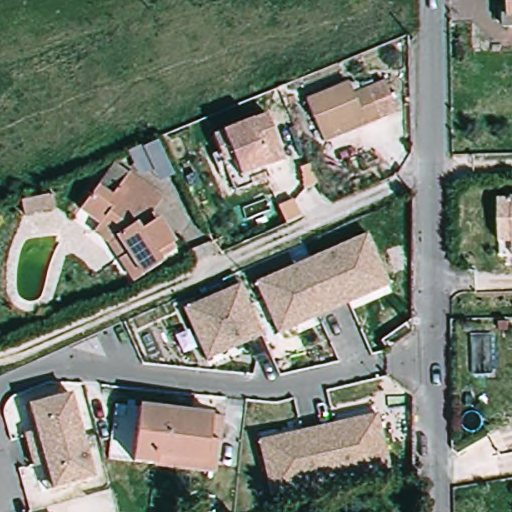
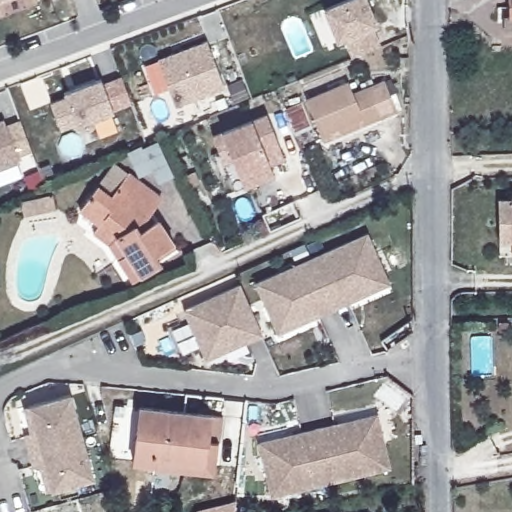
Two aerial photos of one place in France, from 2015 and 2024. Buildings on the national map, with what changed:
new [(0,1),(0,0),(6,0),(1,2),(0,1)]
new [(367,0),(377,25),(372,28),(380,46),(352,58),(344,39),(337,42),(324,9),(347,0),(367,0)]
unchanged [(504,12),(510,12),(509,0),(512,0),(512,27),(504,27),(504,12)]
new [(207,40),(224,89),(174,108),(158,59),(207,40)]
new [(65,98),(64,94),(101,79),(102,84),(121,77),(131,104),(112,111),(113,113),(76,126),(75,125),(60,130),(50,104),(65,98)]
unchanged [(315,136),(301,100),(343,83),(348,94),(379,82),(392,112),(374,118),(358,125),(318,142),(315,136)]
unchanged [(219,156),(212,139),(267,116),(285,160),(266,169),(240,179),(232,161),(223,165),(219,156)]
new [(4,121),(6,126),(20,121),(31,151),(17,156),(19,162),(0,169),(0,122),(4,121)]
unchanged [(98,228),(104,220),(84,205),(103,180),(119,158),(133,169),(167,194),(154,210),(159,217),(162,215),(177,239),(160,251),(165,259),(137,278),(123,255),(113,239),(98,228)]
unchanged [(55,209),(23,215),(20,200),(52,194),(55,209)]
unchanged [(512,197),(512,244),(511,198),(512,197)]
unchanged [(278,334),(255,283),(311,259),(368,234),(390,285),(370,294),(350,303),(334,309),(318,317),(298,325),(278,334)]
unchanged [(206,361),(183,309),(239,284),(262,335),(246,343),(226,352),(206,361)]
unchanged [(39,467),(32,468),(28,453),(23,435),(30,433),(23,408),(28,406),(70,395),(82,438),(93,480),(51,491),(46,493),(39,467)]
unchanged [(204,464),(154,458),(153,465),(132,462),(139,408),(210,417),(204,464)]
unchanged [(222,418),(214,473),(153,465),(154,458),(204,464),(210,417),(222,418)]
unchanged [(258,443),(279,438),(301,433),(318,429),(335,426),(356,421),(378,417),(390,472),(330,484),(270,498),(258,443)]
new [(232,507),(231,512),(207,512),(232,507)]

